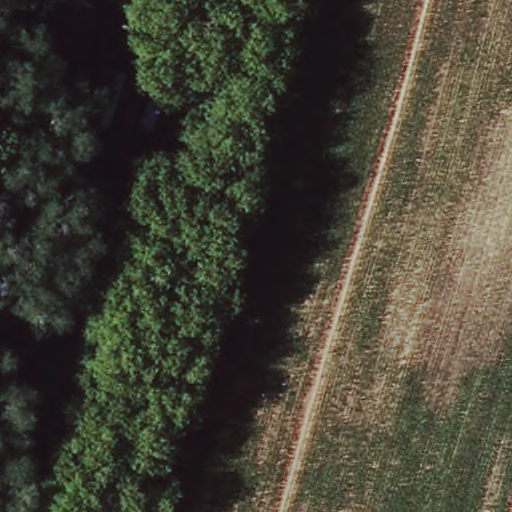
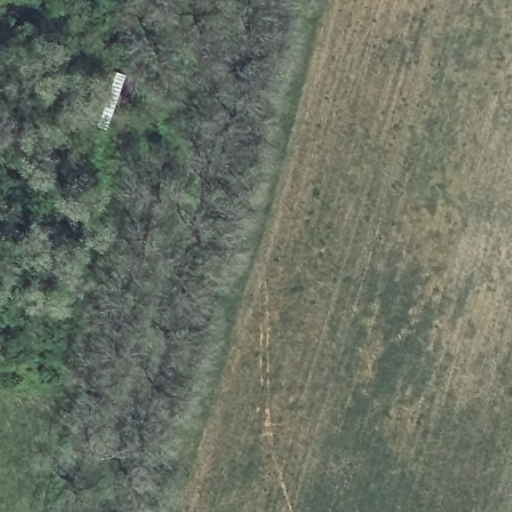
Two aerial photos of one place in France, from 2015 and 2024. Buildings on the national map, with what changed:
unchanged [(88,119),(101,81),(125,90),(112,127),(88,119)]
unchanged [(154,85),(169,90),(148,142),(133,139),(154,85)]

